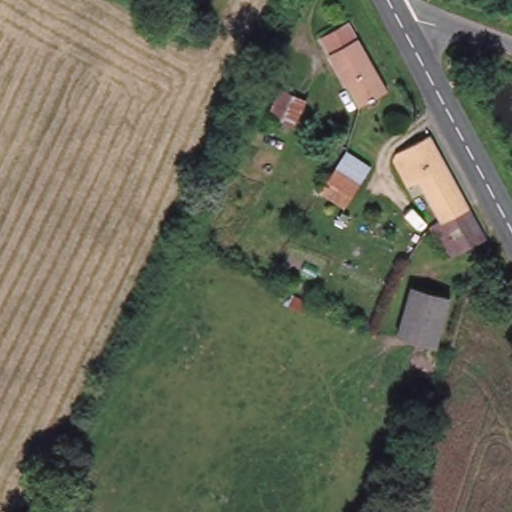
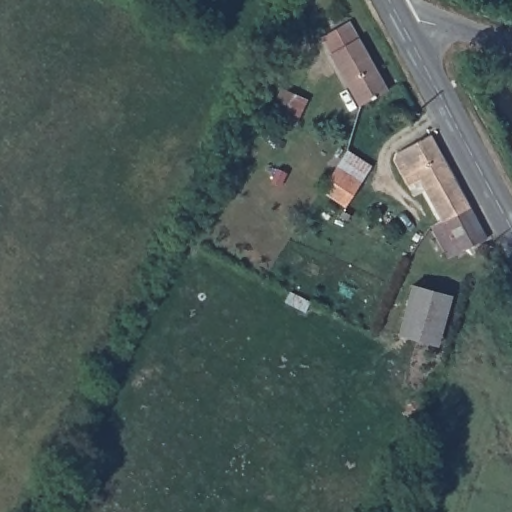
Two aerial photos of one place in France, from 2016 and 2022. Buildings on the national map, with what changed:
unchanged [(348,17),(390,90),(360,108),(318,36),(348,17)]
unchanged [(307,107),(295,137),(265,125),(278,95),(307,107)]
unchanged [(416,200),(394,158),(432,134),(495,252),(483,258),(456,274),(434,235),(443,227),(427,195),(416,200)]
unchanged [(344,161),(348,154),(371,166),(352,207),(320,191),(335,158),(344,161)]
unchanged [(453,294),(438,343),(400,332),(414,281),(453,294)]

